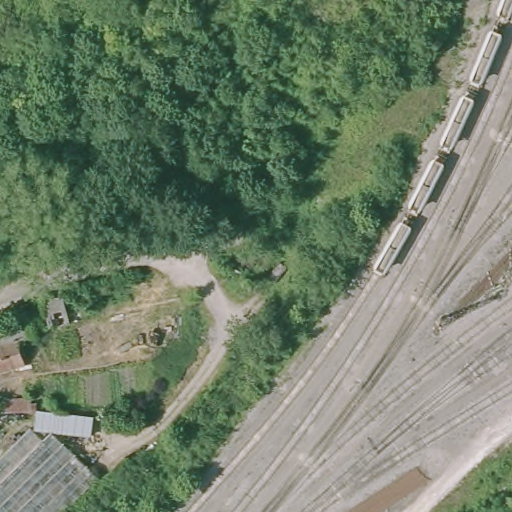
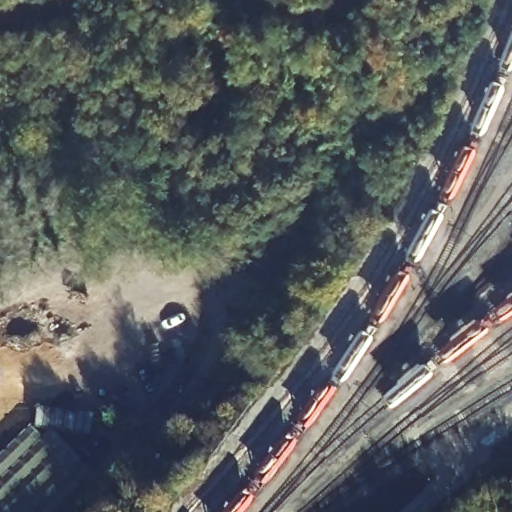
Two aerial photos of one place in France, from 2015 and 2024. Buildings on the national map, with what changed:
unchanged [(24,340),(26,347),(20,348),(25,368),(0,375),(0,333),(33,322),(37,337),(24,340)]
unchanged [(29,401),(35,401),(35,406),(35,411),(29,411),(29,410),(0,410),(0,397),(29,397),(29,401)]
unchanged [(96,475),(59,512),(0,512),(0,477),(48,427),(96,475)]

